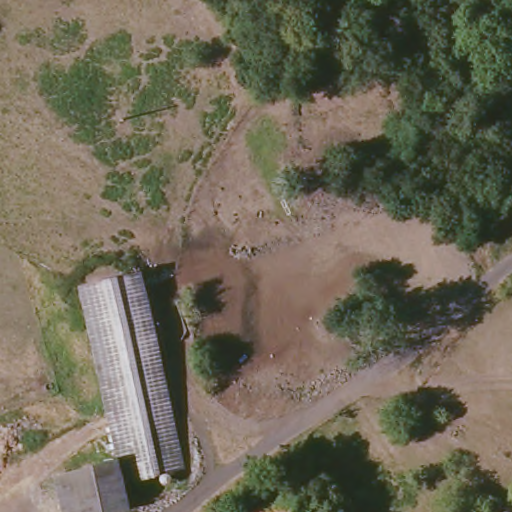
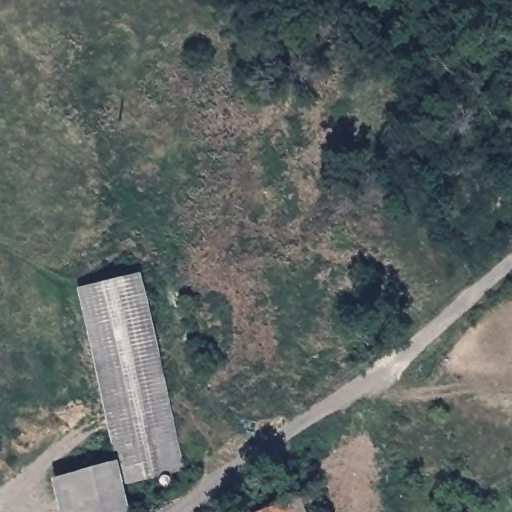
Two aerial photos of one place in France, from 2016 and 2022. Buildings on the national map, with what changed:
unchanged [(181,466),(122,482),(116,457),(76,290),(138,275),(181,466)]
unchanged [(107,512),(73,512),(63,473),(110,459),(124,507),(107,512)]
unchanged [(256,512),(294,498),(299,512),(256,512)]

